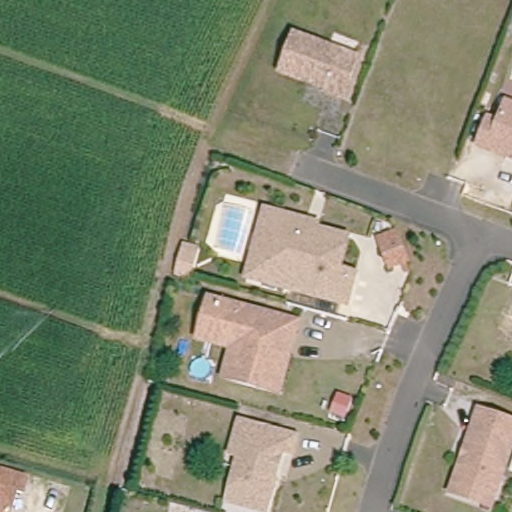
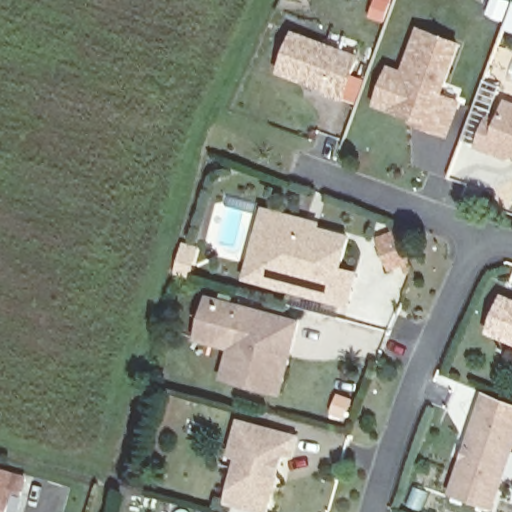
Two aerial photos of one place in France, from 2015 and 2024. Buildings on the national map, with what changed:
new [(464,43),(444,93),(462,100),(447,139),(407,124),(410,119),(373,106),(389,63),(401,69),(418,25),(464,43)]
unchanged [(362,63),(346,105),(329,98),(331,95),(284,77),(298,39),(362,63)]
unchanged [(477,147),(488,119),(498,123),(506,102),(512,105),(512,160),(508,159),(477,147)]
unchanged [(252,283),(270,215),(284,219),(267,287),(252,283)]
unchanged [(344,275),(360,280),(352,311),(267,287),(284,219),(311,227),(323,230),(322,235),(353,244),(344,275)]
unchanged [(177,278),(184,251),(198,256),(190,282),(177,278)]
unchanged [(413,277),(407,279),(400,260),(406,258),(413,277)]
new [(487,334),(504,294),(512,297),(512,343),(487,334)]
unchanged [(210,337),(244,345),(234,386),(224,384),(232,351),(198,343),(209,300),(217,302),(210,337)]
unchanged [(300,322),(294,344),(289,341),(285,359),(291,360),(282,398),(234,386),(244,345),(210,337),(217,302),(300,322)]
unchanged [(492,512),(481,512),(451,500),(480,417),(512,429),(512,455),(492,512)]
unchanged [(284,456),(277,483),(281,485),(274,512),(251,512),(233,506),(249,448),(240,445),(245,426),(303,442),(299,461),(284,456)]
unchanged [(15,490),(9,512),(0,512),(0,469),(26,477),(22,492),(15,490)]

